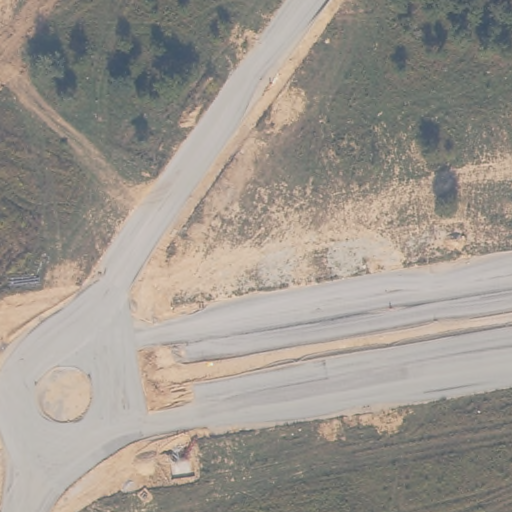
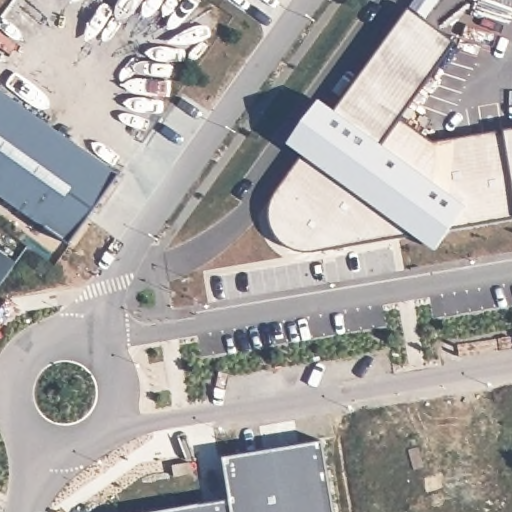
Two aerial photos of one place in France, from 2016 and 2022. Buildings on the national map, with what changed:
new [(512,218),(452,228),(435,251),(410,234),(315,252),(304,252),(294,250),(284,245),(278,239),(273,231),(269,220),(270,209),(274,196),(302,156),(286,144),(318,100),(333,108),(408,9),(455,41),(401,118),(434,141),(504,130),(512,128),(512,218)]
unchanged [(69,246),(0,197),(0,89),(119,174),(69,246)]
new [(230,500),(222,458),(323,440),(335,512),(155,512),(230,500)]

